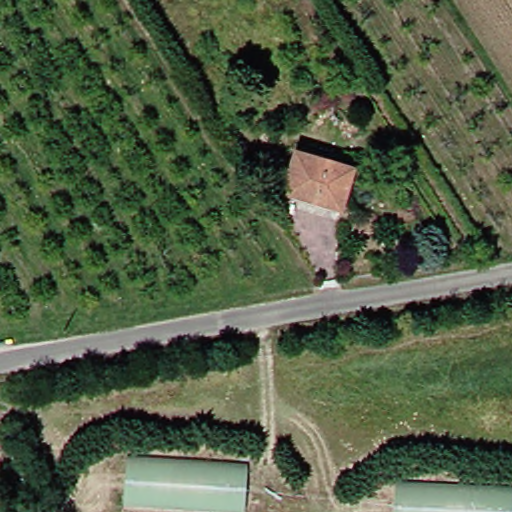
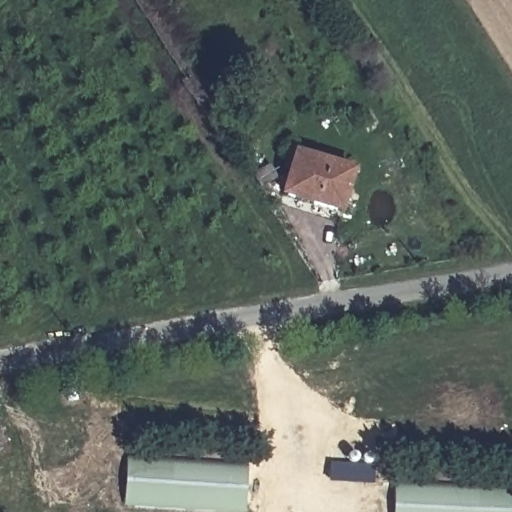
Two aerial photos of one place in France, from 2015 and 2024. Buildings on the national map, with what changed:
unchanged [(337,210),(283,193),(294,153),(350,170),(337,210)]
unchanged [(276,176),(259,185),(250,171),(265,161),(276,176)]
unchanged [(242,465),(238,512),(181,512),(116,508),(120,457),(242,465)]
unchanged [(388,485),(509,488),(508,512),(386,512),(388,485)]

